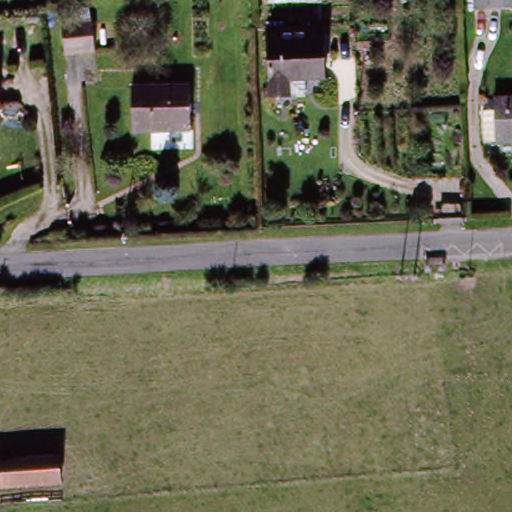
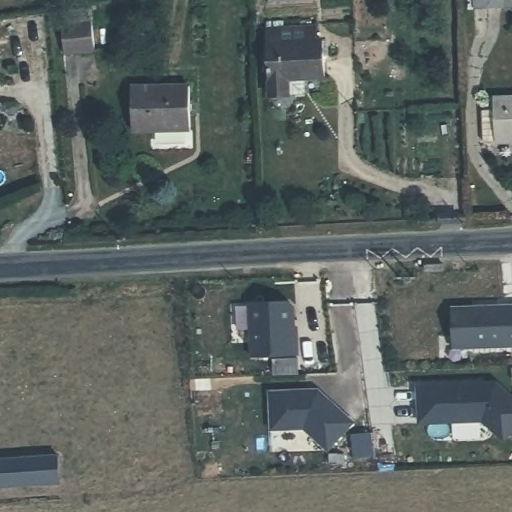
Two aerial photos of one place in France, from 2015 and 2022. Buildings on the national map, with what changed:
unchanged [(478,0),(512,0),(512,9),(478,9),(478,0)]
unchanged [(59,25),(87,21),(90,48),(62,52),(59,25)]
unchanged [(309,82),(309,96),(270,98),(267,31),(317,26),(318,43),(324,43),(325,80),(309,82)]
unchanged [(194,86),(195,126),(137,128),(135,88),(194,86)]
unchanged [(484,105),(495,104),(495,94),(512,95),(512,147),(484,147),(484,105)]
new [(295,301),(297,355),(252,359),(249,302),(295,301)]
new [(455,310),(512,308),(512,348),(457,350),(455,310)]
new [(512,396),(512,436),(507,441),(486,422),(424,425),(422,388),(500,385),(512,396)]
new [(310,392),(310,394),(319,394),(321,391),(357,423),(332,451),(307,430),(275,431),(274,393),(310,392)]
unchanged [(0,511),(0,458),(59,456),(62,506),(0,511)]

